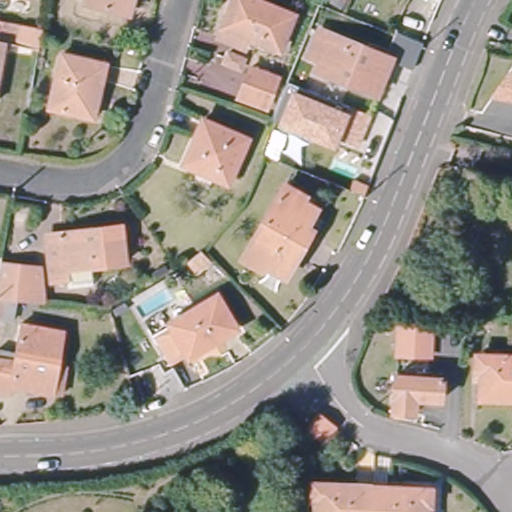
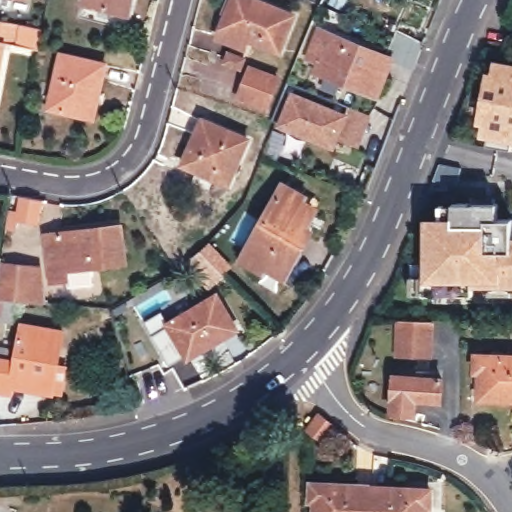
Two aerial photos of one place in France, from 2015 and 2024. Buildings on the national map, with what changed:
unchanged [(86,3),(87,0),(132,0),(129,14),(86,3)]
unchanged [(225,31),(236,0),(241,0),(292,20),(280,54),(225,31)]
unchanged [(42,44),(8,38),(0,83),(0,16),(46,24),(42,44)]
unchanged [(376,99),(316,74),(319,65),(308,61),(320,30),(392,59),(376,99)]
new [(228,48),(247,56),(240,71),(222,64),(228,48)]
unchanged [(93,116),(51,108),(62,53),(104,63),(93,116)]
new [(491,72),(493,59),(512,63),(512,143),(479,137),(481,125),(475,124),(485,70),(491,72)]
unchanged [(270,111),(243,101),(253,69),(280,78),(270,111)]
unchanged [(372,116),(360,147),(338,139),(334,150),(277,126),(278,124),(272,120),(289,81),(372,116)]
unchanged [(197,180),(201,168),(186,162),(201,117),(247,133),(231,177),(218,174),(214,186),(197,180)]
unchanged [(281,277),(247,258),(285,187),(307,197),(303,204),(316,211),(281,277)]
new [(472,289),(473,293),(425,293),(426,281),(425,219),(442,218),(440,205),(455,204),(497,204),(497,219),(512,219),(512,288),(472,289)]
unchanged [(67,279),(66,274),(53,276),(48,229),(121,219),(126,254),(91,259),(92,277),(67,279)]
unchanged [(38,266),(41,301),(13,298),(7,323),(0,322),(0,265),(0,262),(38,266)]
unchanged [(227,332),(180,361),(161,329),(207,300),(227,332)]
unchanged [(431,356),(397,356),(397,320),(431,319),(431,356)]
unchanged [(55,388),(12,383),(12,387),(0,385),(0,345),(18,347),(24,320),(65,328),(59,362),(68,363),(64,389),(55,388)]
unchanged [(512,358),(512,400),(480,399),(481,381),(474,380),(475,371),(475,356),(512,358)]
unchanged [(439,402),(416,401),(415,416),(390,414),(392,377),(440,380),(439,402)]
unchanged [(324,443),(308,430),(320,416),(336,428),(324,443)]
unchanged [(435,488),(434,501),(434,512),(431,512),(319,512),(319,508),(315,508),(315,497),(317,483),(435,488)]

